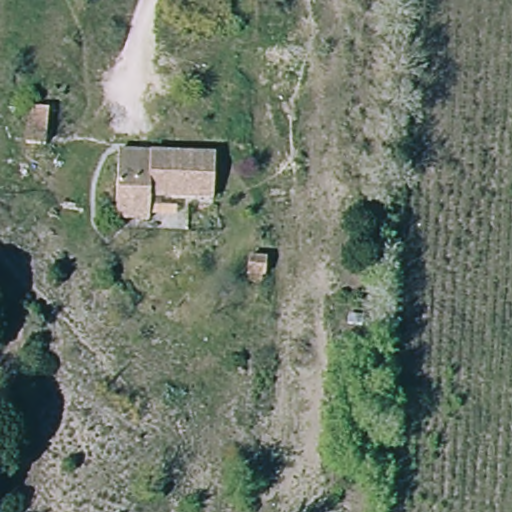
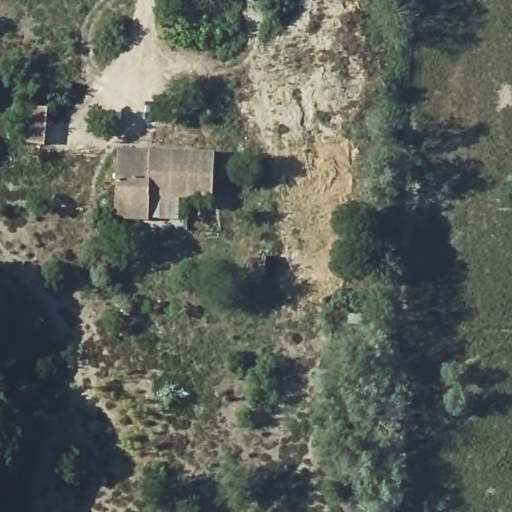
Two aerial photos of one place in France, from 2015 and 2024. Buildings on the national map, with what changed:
unchanged [(37,128),(27,127),(27,107),(38,108),(37,128)]
unchanged [(220,155),(218,200),(155,197),(155,220),(121,218),(123,150),(220,155)]
unchanged [(265,259),(265,276),(248,274),(250,258),(265,259)]

